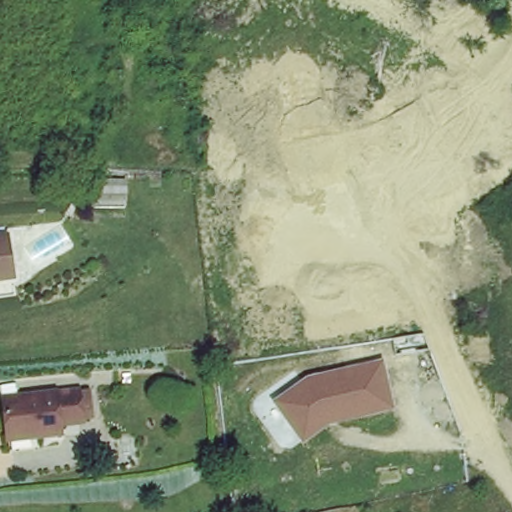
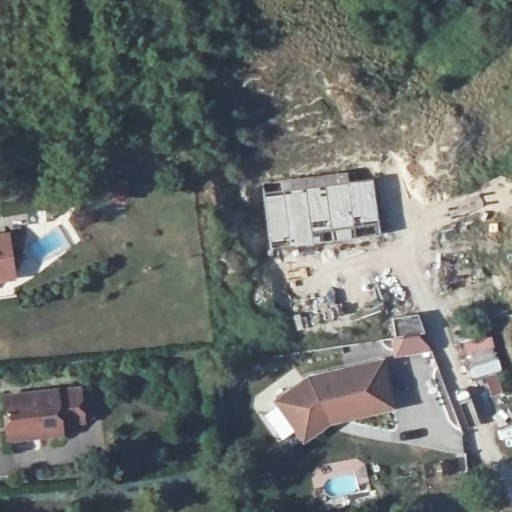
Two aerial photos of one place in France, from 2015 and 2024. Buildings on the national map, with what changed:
new [(291,239),(270,241),(264,193),(281,190),(280,181),(347,172),(350,183),(373,179),(380,234),(291,245),(291,239)]
unchanged [(13,280),(0,282),(0,242),(5,241),(13,280)]
new [(390,338),(396,337),(393,318),(417,313),(424,332),(432,350),(394,357),(390,338)]
new [(463,342),(490,336),(502,369),(496,371),(502,391),(490,395),(484,374),(472,377),(463,342)]
unchanged [(307,375),(385,357),(398,410),(332,423),(303,443),(272,401),(307,375)]
unchanged [(79,424),(60,427),(60,436),(38,439),(37,435),(4,439),(0,413),(0,403),(73,393),(79,424)]

